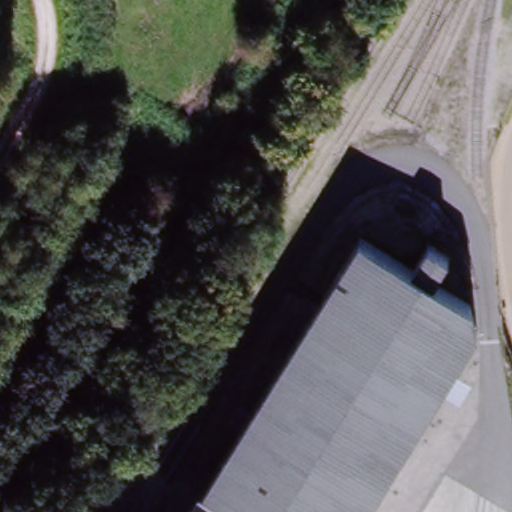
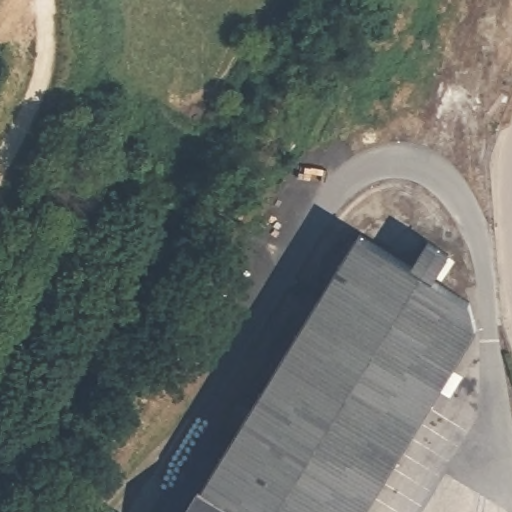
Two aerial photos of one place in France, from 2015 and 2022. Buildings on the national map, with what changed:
unchanged [(421,259),(436,235),(457,247),(441,275),(484,298),(485,323),(368,512),(190,512),(367,227),(421,259)]

